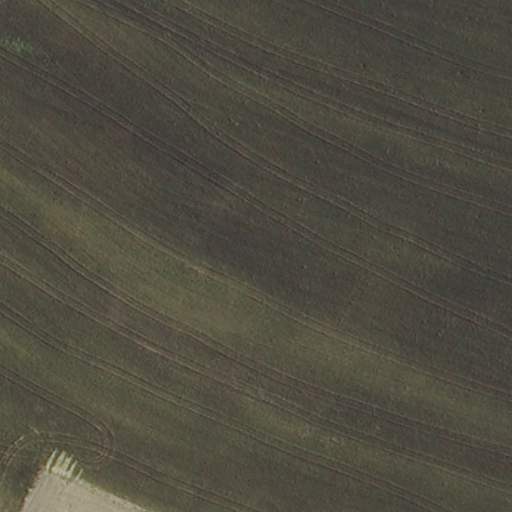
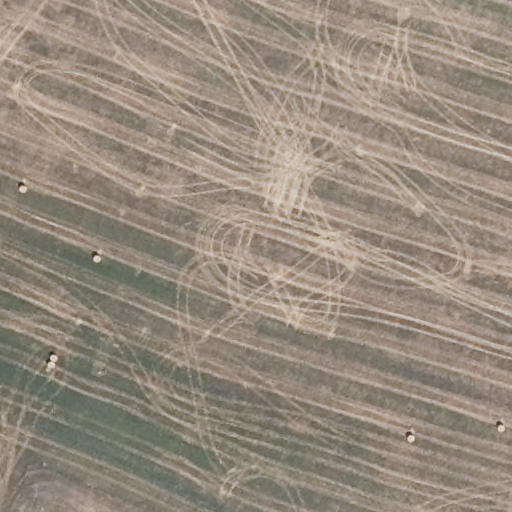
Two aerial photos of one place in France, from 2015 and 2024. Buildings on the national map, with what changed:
[]

